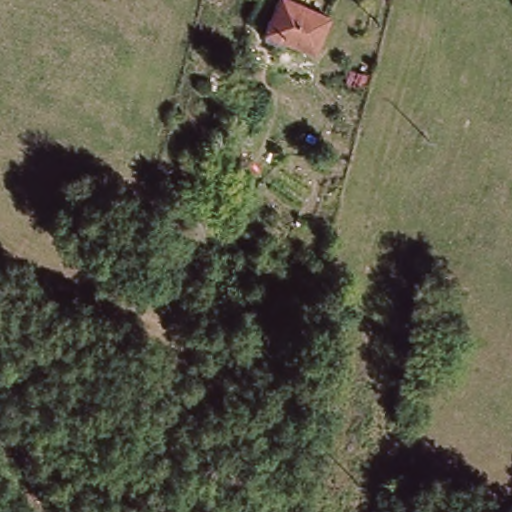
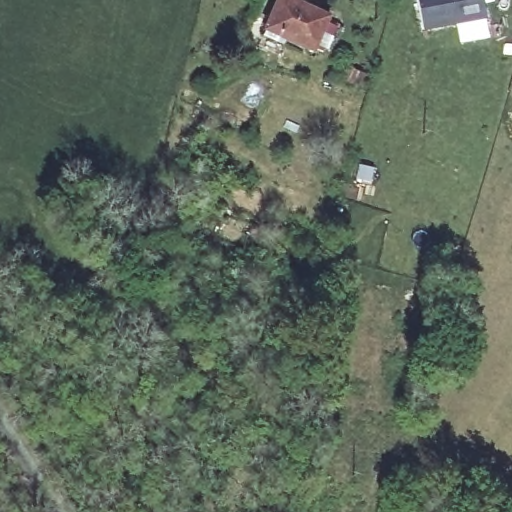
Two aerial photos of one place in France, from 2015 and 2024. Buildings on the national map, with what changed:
unchanged [(319,54),(270,36),(283,0),(309,0),(304,13),(330,23),(319,54)]
new [(484,0),(488,19),(420,30),(415,0),(484,0)]

